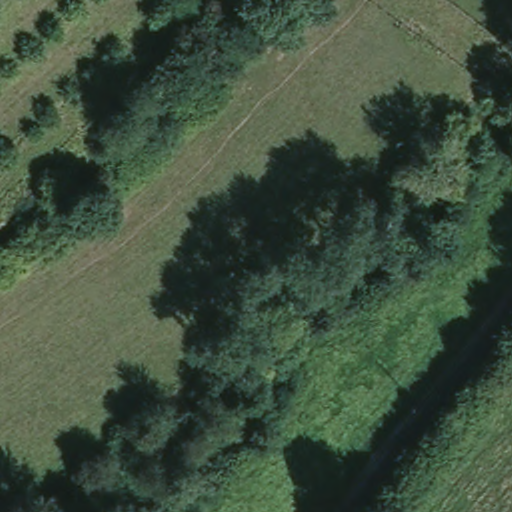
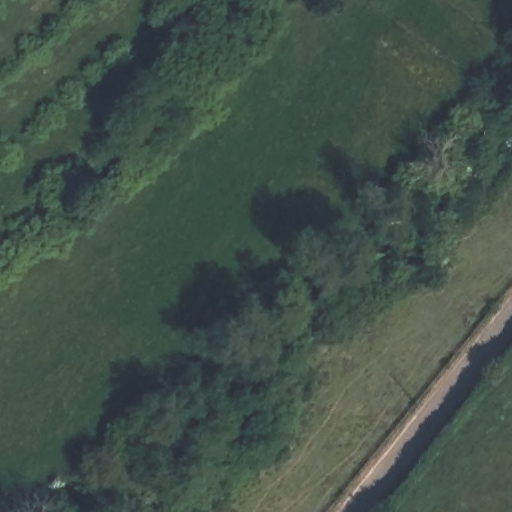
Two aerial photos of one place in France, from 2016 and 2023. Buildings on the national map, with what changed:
[]

